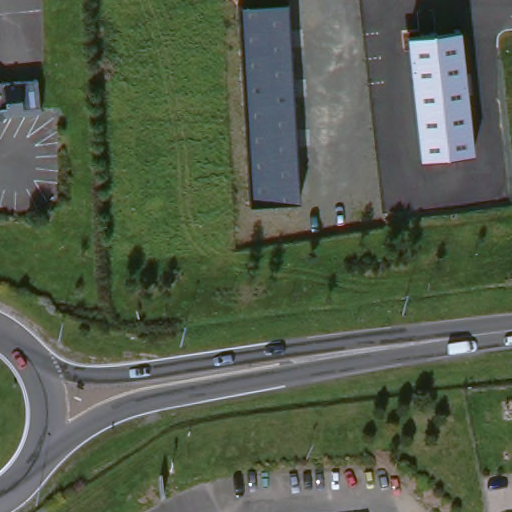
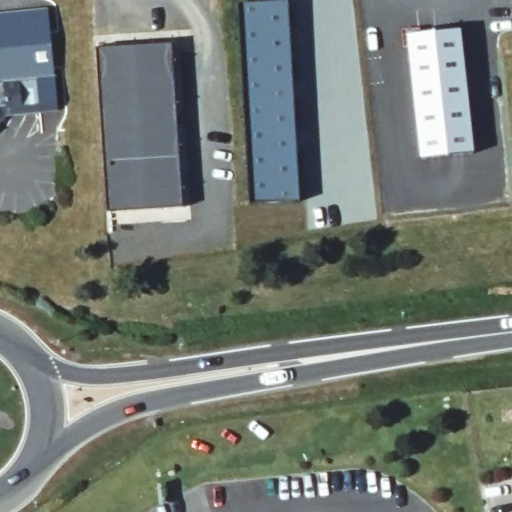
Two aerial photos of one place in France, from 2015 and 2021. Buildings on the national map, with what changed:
unchanged [(237,4),(288,2),(301,202),(249,205),(237,4)]
new [(34,81),(0,85),(0,15),(47,10),(57,113),(37,114),(34,81)]
unchanged [(407,35),(460,29),(473,153),(420,158),(407,35)]
new [(105,162),(97,49),(172,43),(180,156),(182,205),(108,211),(105,162)]
unchanged [(34,81),(37,114),(1,117),(0,118),(0,85),(34,81)]

